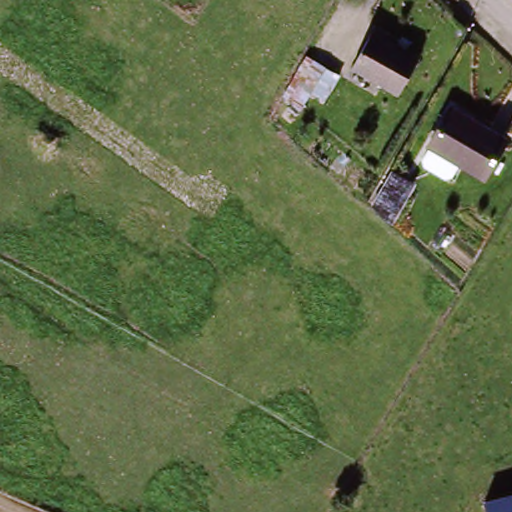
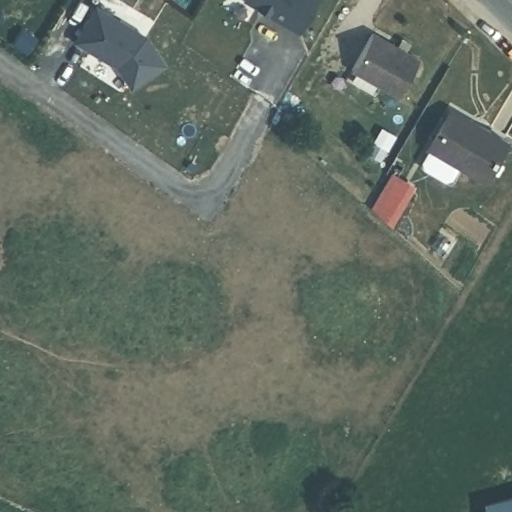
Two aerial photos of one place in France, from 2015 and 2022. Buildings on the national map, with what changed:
new [(298,34),(243,1),(243,0),(319,0),(298,34)]
new [(145,34),(166,65),(131,89),(116,67),(73,42),(94,6),(145,34)]
unchanged [(399,96),(350,65),(375,27),(423,59),(399,96)]
unchanged [(339,79),(326,104),(311,96),(299,116),(279,102),(306,58),(339,79)]
unchanged [(443,178),(423,164),(422,158),(431,146),(428,144),(454,107),(506,143),(479,183),(457,165),(448,178),(443,178)]
unchanged [(415,186),(390,229),(370,210),(391,174),(415,186)]
unchanged [(508,512),(512,511),(512,512),(508,512)]

